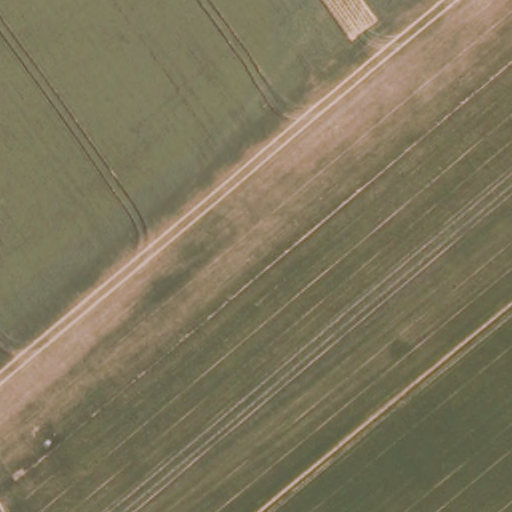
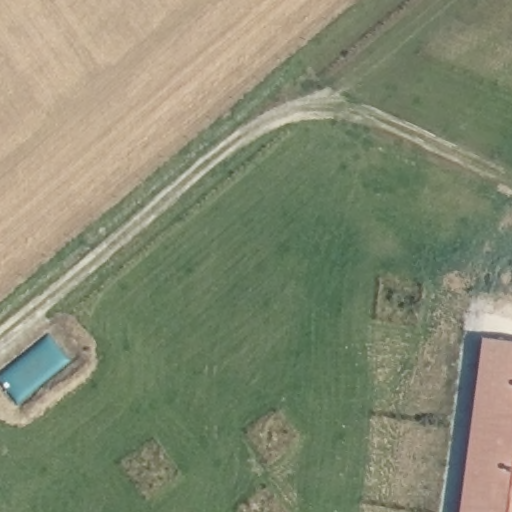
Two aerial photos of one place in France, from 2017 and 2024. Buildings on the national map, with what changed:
new [(512,512),(466,512),(489,343),(512,346),(512,512)]

